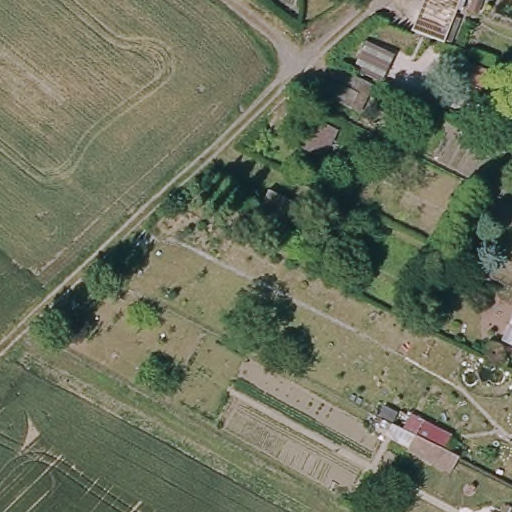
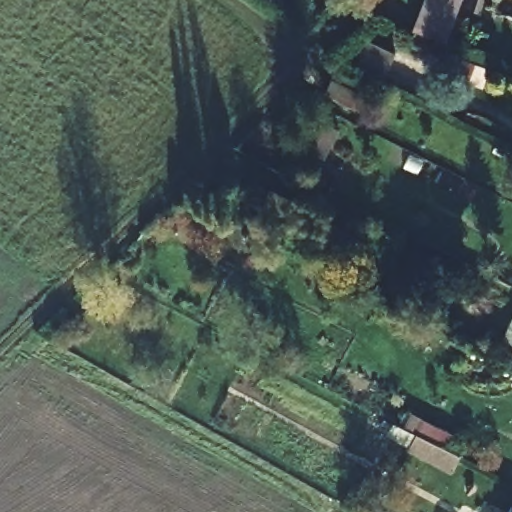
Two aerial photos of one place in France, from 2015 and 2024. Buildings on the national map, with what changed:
unchanged [(419,0),(455,0),(442,46),(405,35),(419,0)]
unchanged [(377,36),(404,50),(390,76),(363,62),(377,36)]
unchanged [(337,82),(343,72),(370,86),(365,95),(358,110),(330,96),(337,82)]
unchanged [(302,143),(316,117),(340,130),(327,156),(302,143)]
unchanged [(250,215),(265,187),(288,201),(273,227),(250,215)]
unchanged [(512,337),(512,349),(507,347),(512,337)]
unchanged [(439,448),(410,433),(420,417),(448,432),(439,448)]
unchanged [(512,510),(512,512),(507,512),(510,508),(512,510)]

